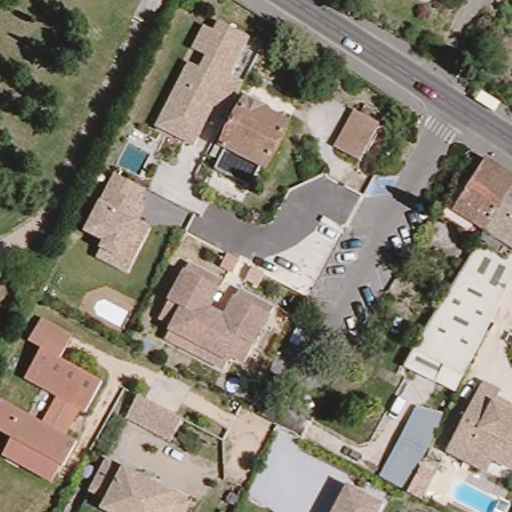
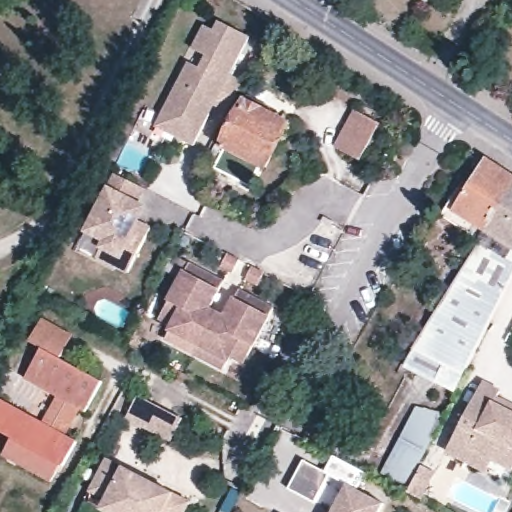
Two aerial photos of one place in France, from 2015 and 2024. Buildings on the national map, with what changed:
unchanged [(153,127),(202,25),(212,31),(217,21),(261,43),(242,86),(210,111),(192,147),(153,127)]
unchanged [(270,162),(265,160),(250,188),(213,169),(220,154),(215,151),(223,137),(229,140),(251,96),(292,118),(270,162)]
unchanged [(358,162),(333,149),(353,111),(377,125),(358,162)]
unchanged [(485,163),(512,180),(512,189),(486,235),(453,214),(485,163)]
unchanged [(93,259),(102,243),(83,234),(98,203),(113,174),(143,190),(137,203),(144,207),(135,222),(147,229),(125,274),(93,259)]
unchanged [(486,235),(512,189),(512,252),(486,235)]
unchanged [(512,266),(512,283),(455,396),(455,397),(403,372),(479,247),(480,246),(512,266)]
unchanged [(247,367),(231,359),(223,373),(161,343),(168,326),(155,320),(187,258),(229,280),(214,310),(222,314),(238,286),(276,307),(268,321),(247,367)]
unchanged [(10,439),(0,433),(0,400),(40,423),(55,397),(22,379),(40,348),(27,341),(40,319),(70,336),(63,349),(57,359),(100,383),(82,413),(76,409),(61,435),(74,442),(60,467),(57,465),(48,481),(2,455),(10,439)]
unchanged [(444,453),(481,383),(501,394),(496,405),(512,413),(512,467),(511,469),(492,458),(483,473),(444,453)]
unchanged [(180,420),(170,442),(125,419),(136,397),(180,420)]
unchanged [(374,417),(390,423),(412,409),(417,411),(423,406),(450,414),(410,491),(350,459),(374,417)]
unchanged [(179,512),(104,512),(97,509),(102,499),(85,491),(102,459),(185,501),(179,512)]
unchanged [(382,504),(378,512),(329,512),(345,484),(382,504)]

